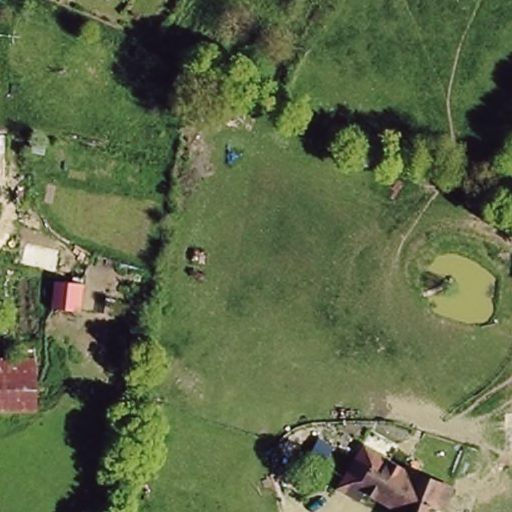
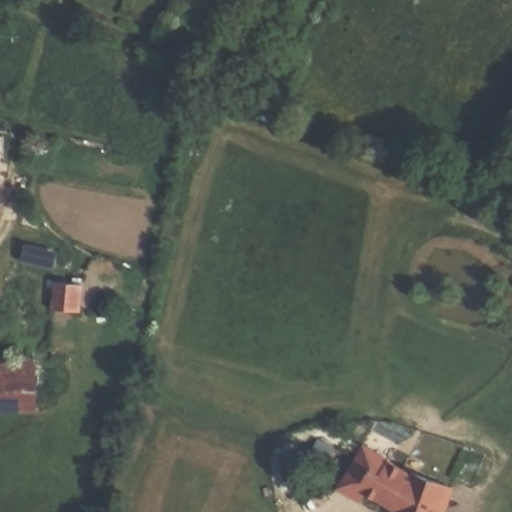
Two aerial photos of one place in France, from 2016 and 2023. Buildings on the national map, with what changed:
unchanged [(4,154),(0,154),(0,137),(4,137),(4,154)]
unchanged [(54,281),(83,281),(80,313),(50,310),(54,281)]
unchanged [(35,412),(0,412),(0,361),(34,361),(35,412)]
unchanged [(434,506),(432,512),(400,512),(402,506),(397,502),(394,508),(358,485),(371,466),(376,469),(386,455),(414,472),(416,467),(444,478),(454,481),(451,492),(444,510),(434,506)]

